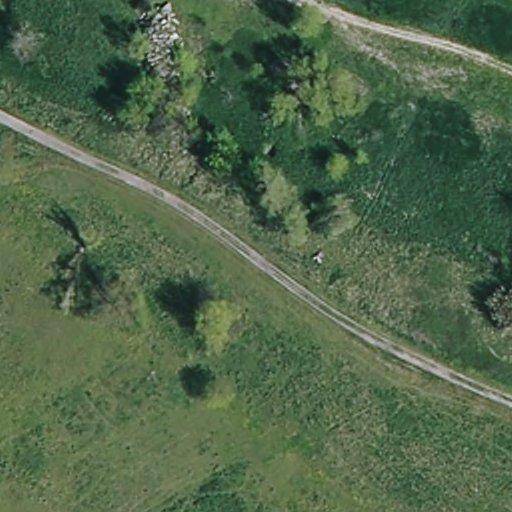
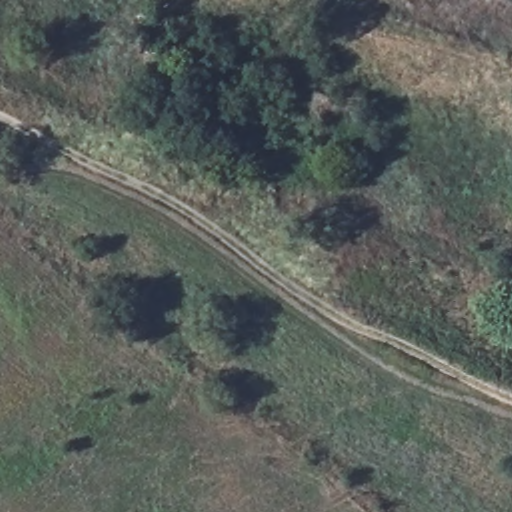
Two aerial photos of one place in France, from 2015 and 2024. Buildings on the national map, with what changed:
[]

